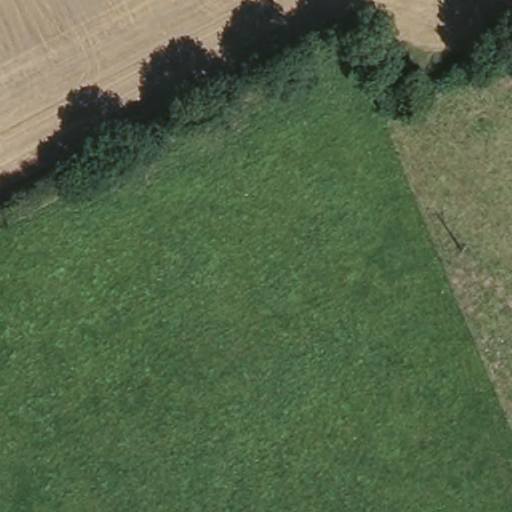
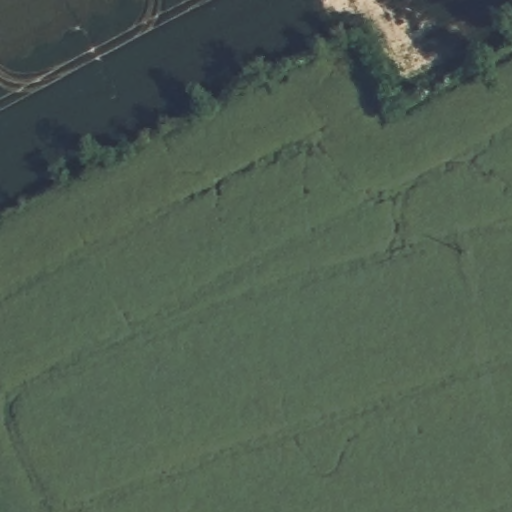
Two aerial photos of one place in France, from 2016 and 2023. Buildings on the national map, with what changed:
[]

